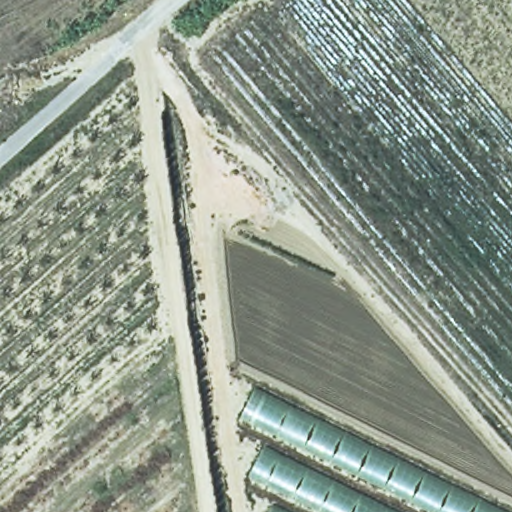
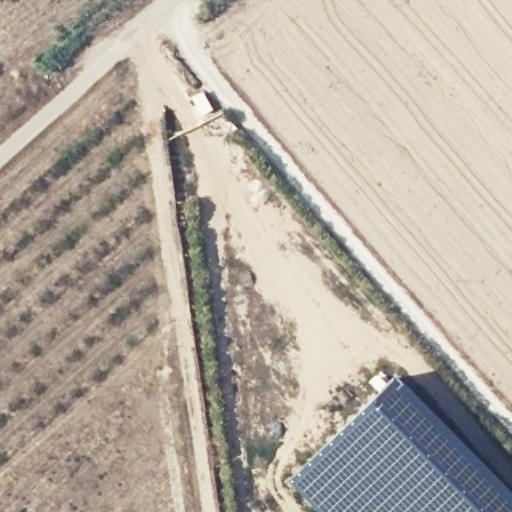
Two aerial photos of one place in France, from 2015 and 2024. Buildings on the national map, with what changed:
new [(376,392),(367,382),(380,371),(388,380),(392,377),(407,393),(434,427),(458,452),(499,493),(512,506),(512,512),(316,512),(286,481),(376,392)]
demolished [(277,492),(249,477),(268,435),(239,422),(252,395),(498,512),(267,512),(277,492)]

